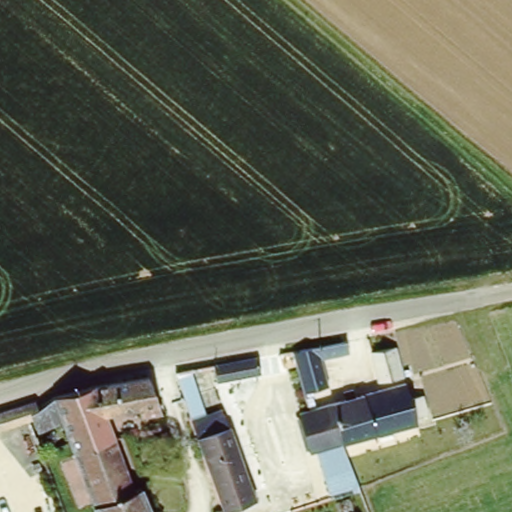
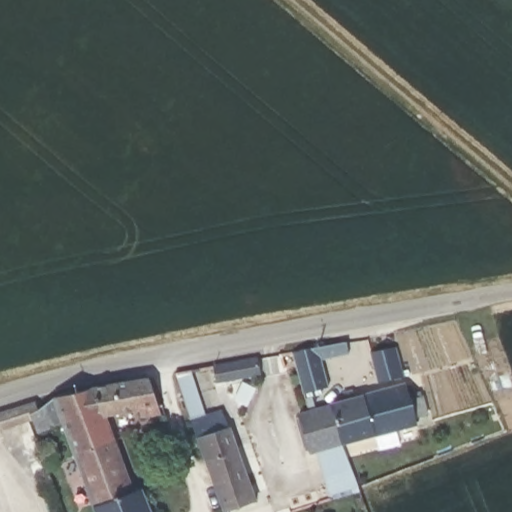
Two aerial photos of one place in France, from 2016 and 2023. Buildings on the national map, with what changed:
unchanged [(358,331),(361,348),(324,355),(330,382),(306,390),(291,343),(358,331)]
unchanged [(398,344),(404,368),(388,372),(381,349),(398,344)]
unchanged [(257,359),(260,375),(216,382),(214,367),(257,359)]
unchanged [(153,512),(97,512),(62,420),(34,426),(28,411),(49,395),(148,374),(161,410),(146,416),(141,402),(108,414),(135,485),(141,482),(153,512)]
unchanged [(344,438),(343,435),(331,395),(343,391),(341,387),(355,383),(358,392),(403,379),(409,397),(423,392),(429,408),(414,414),(416,418),(344,438)]
unchanged [(343,435),(318,441),(311,443),(300,403),(309,401),(331,395),(343,435)]
unchanged [(24,402),(28,411),(0,420),(0,410),(24,402)]
unchanged [(225,508),(198,434),(192,418),(223,406),(256,497),(225,508)]
unchanged [(343,435),(344,438),(360,487),(333,491),(318,441),(343,435)]

